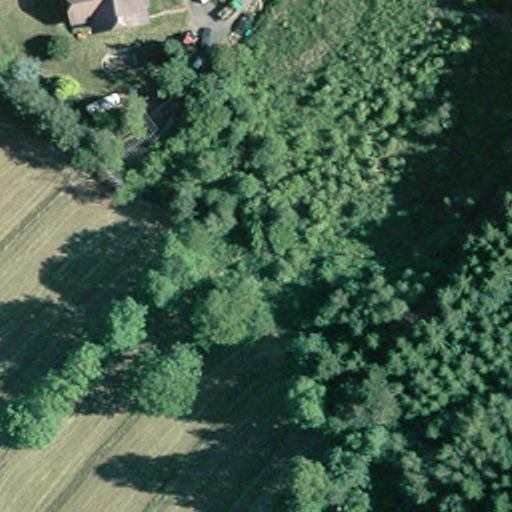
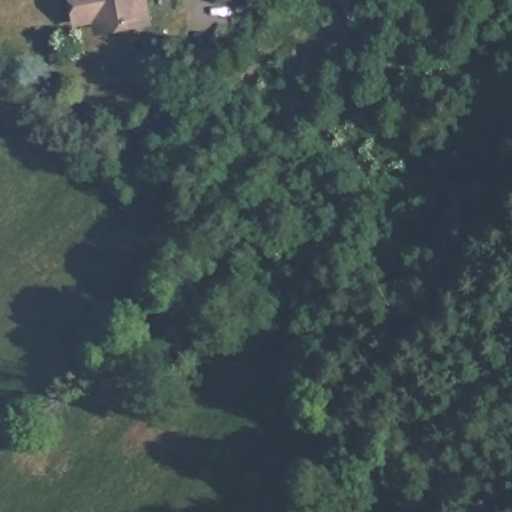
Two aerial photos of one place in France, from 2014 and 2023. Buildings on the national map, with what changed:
unchanged [(100,28),(98,13),(80,14),(79,0),(145,0),(145,28),(100,28)]

